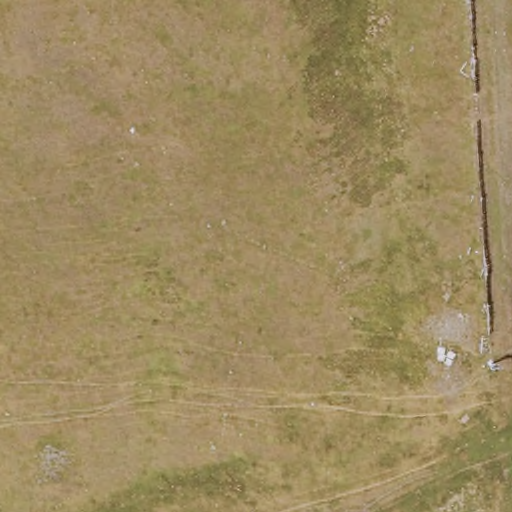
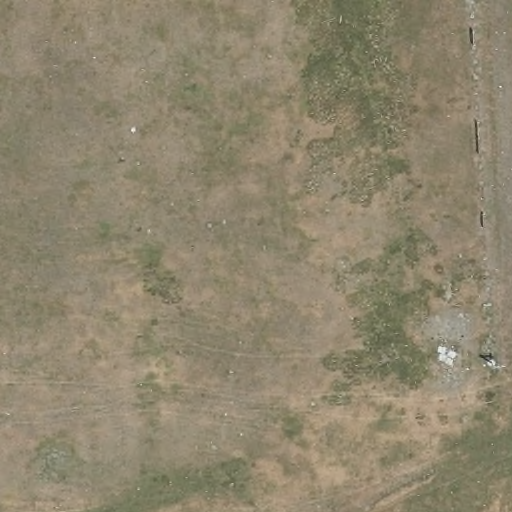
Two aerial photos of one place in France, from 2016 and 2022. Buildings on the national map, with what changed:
unchanged [(432,357),(440,345),(456,355),(451,366),(432,357)]

